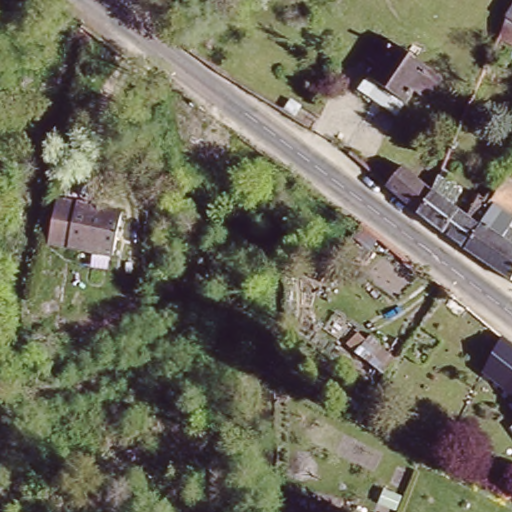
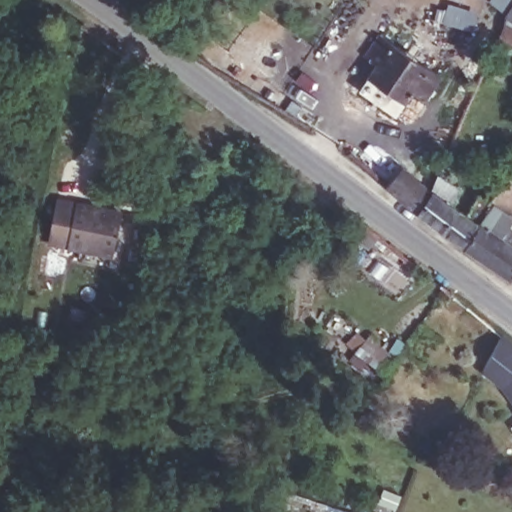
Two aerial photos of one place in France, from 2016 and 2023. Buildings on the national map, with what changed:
unchanged [(505,24),(512,14),(512,27),(505,24)]
unchanged [(510,35),(512,31),(512,36),(510,35)]
unchanged [(398,45),(443,75),(428,97),(417,91),(399,116),(358,89),(372,65),(361,57),(364,53),(379,32),(398,45)]
unchanged [(511,283),(465,248),(420,213),(391,190),(402,174),(432,194),(446,171),(468,186),(458,201),(471,211),(484,195),(492,201),(509,178),(512,181),(512,283),(511,283)]
unchanged [(62,201),(125,215),(116,257),(52,243),(62,201)]
unchanged [(512,334),(512,372),(491,360),(506,330),(512,334)]

